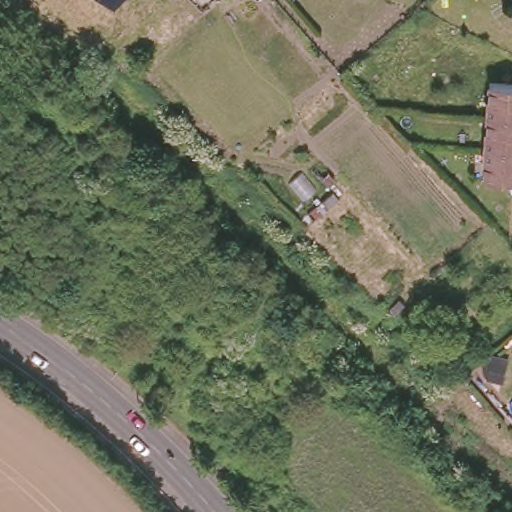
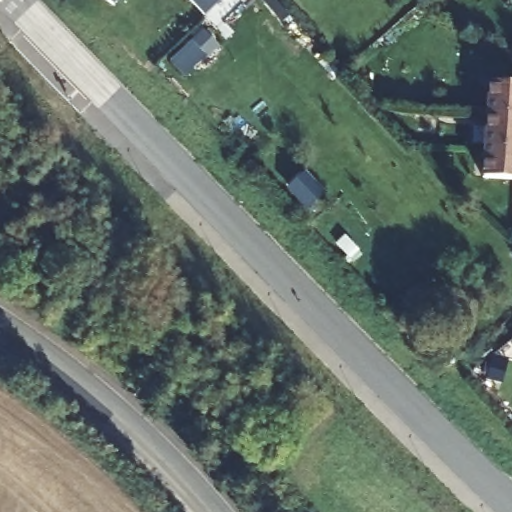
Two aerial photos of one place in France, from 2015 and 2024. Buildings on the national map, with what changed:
unchanged [(104,0),(120,0),(113,7),(104,0)]
unchanged [(512,80),(512,112),(482,114),(481,82),(512,80)]
unchanged [(482,114),(512,112),(512,145),(483,146),(482,114)]
unchanged [(512,178),(484,180),(483,146),(512,145),(512,178)]

